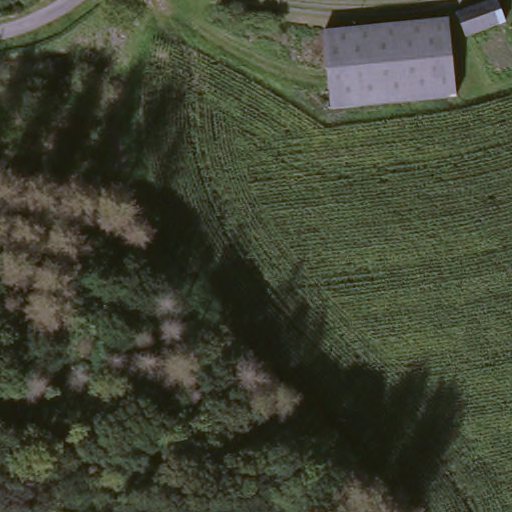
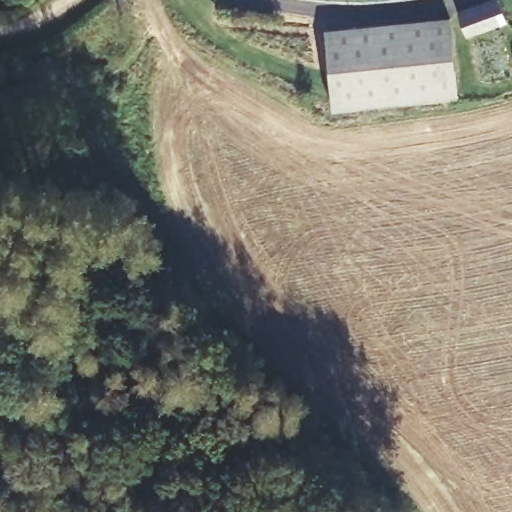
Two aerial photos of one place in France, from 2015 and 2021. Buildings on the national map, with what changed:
unchanged [(501,6),(509,30),(461,49),(453,22),(501,6)]
unchanged [(440,24),(458,98),(339,122),(324,45),(440,24)]

